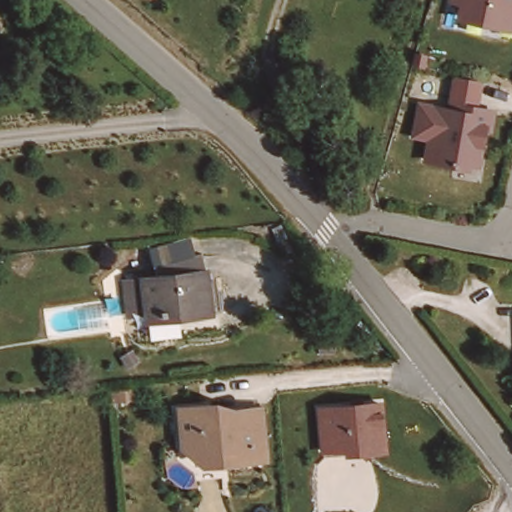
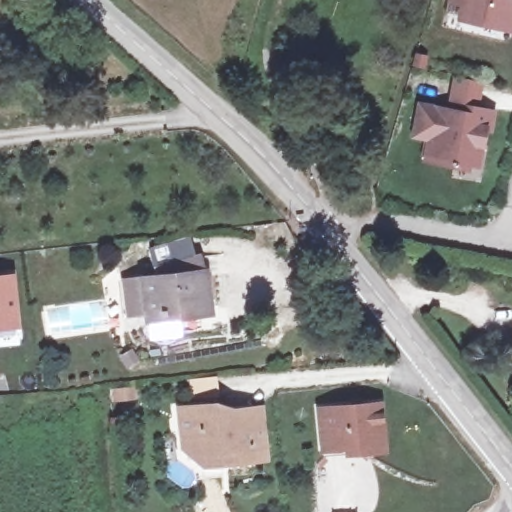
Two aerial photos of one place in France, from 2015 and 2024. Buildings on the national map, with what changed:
unchanged [(463,19),(467,5),(452,1),(452,0),(512,0),(512,30),(500,28),(463,19)]
unchanged [(469,166),(457,163),(456,168),(428,163),(432,141),(416,138),(423,108),(453,114),(454,108),(465,110),(495,116),(492,132),(487,131),(484,148),(479,168),(469,166)]
unchanged [(125,279),(143,278),(160,277),(159,265),(173,261),(202,255),(205,273),(206,272),(211,315),(179,319),(178,309),(147,314),(147,313),(129,314),(125,279)]
new [(14,273),(19,329),(0,330),(0,274),(14,273)]
unchanged [(379,444),(366,461),(360,457),(356,450),(318,453),(313,411),(374,405),(379,444)]
unchanged [(225,460),(199,462),(188,454),(182,412),(210,410),(211,417),(253,414),(264,413),(270,462),(258,463),(226,467),(225,460)]

